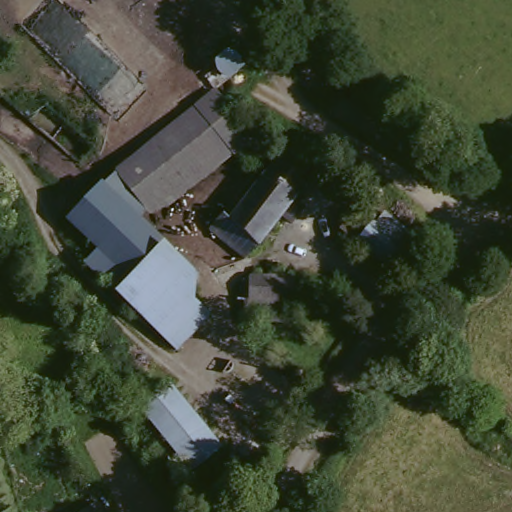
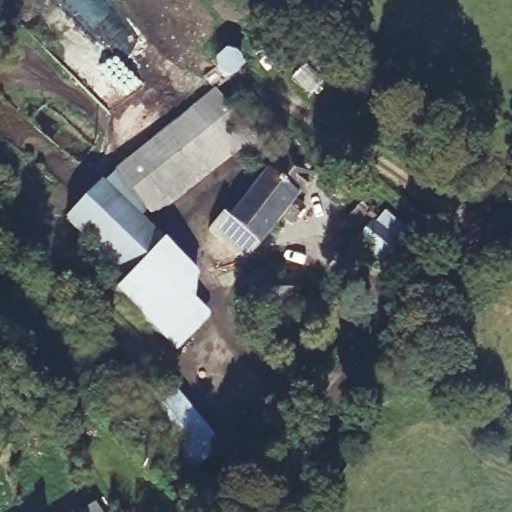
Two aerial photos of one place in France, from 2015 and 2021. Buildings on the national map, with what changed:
unchanged [(209,86),(244,130),(251,124),(264,142),(236,162),(227,151),(186,103),(209,86)]
unchanged [(227,151),(146,213),(105,166),(186,103),(227,151)]
unchanged [(277,144),(308,169),(290,191),(259,165),(277,144)]
unchanged [(288,194),(296,201),(285,215),(277,207),(239,254),(201,225),(216,206),(222,210),(259,165),(290,191),(288,194)]
unchanged [(186,295),(202,310),(168,346),(76,260),(89,246),(58,214),(88,183),(190,268),(186,295)]
unchanged [(345,230),(363,209),(415,255),(396,277),(345,230)]
unchanged [(300,314),(300,328),(245,327),(245,304),(256,304),(257,280),(299,280),(300,314)]
unchanged [(229,449),(196,478),(153,422),(182,393),(229,449)]
unchanged [(95,506),(99,512),(85,512),(95,506)]

